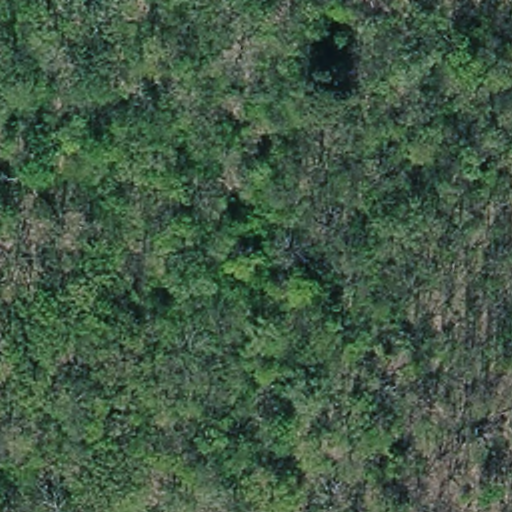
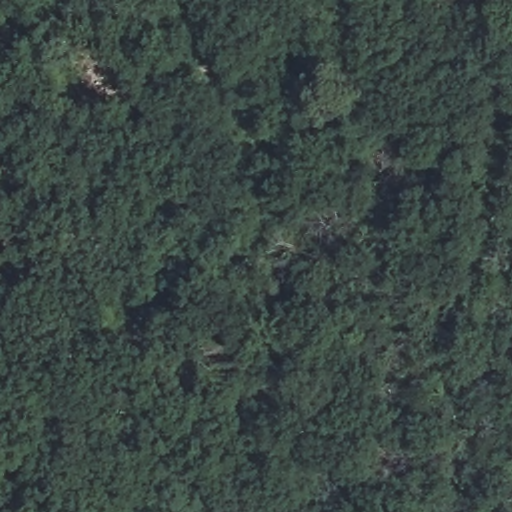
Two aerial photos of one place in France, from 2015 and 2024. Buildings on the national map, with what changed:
[]

